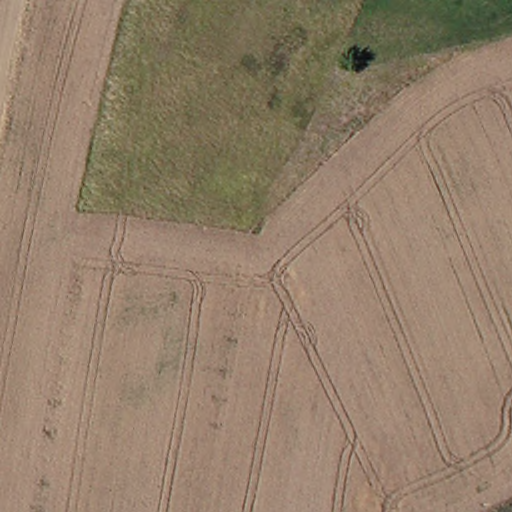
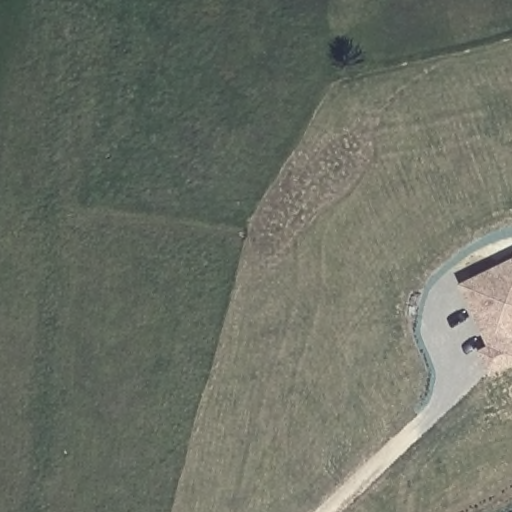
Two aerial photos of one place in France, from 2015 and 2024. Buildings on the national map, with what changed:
new [(492,375),(483,355),(493,350),(464,288),(512,266),(512,365),(492,375)]

